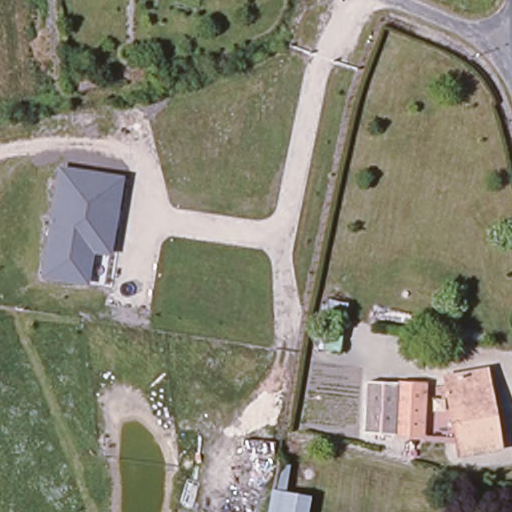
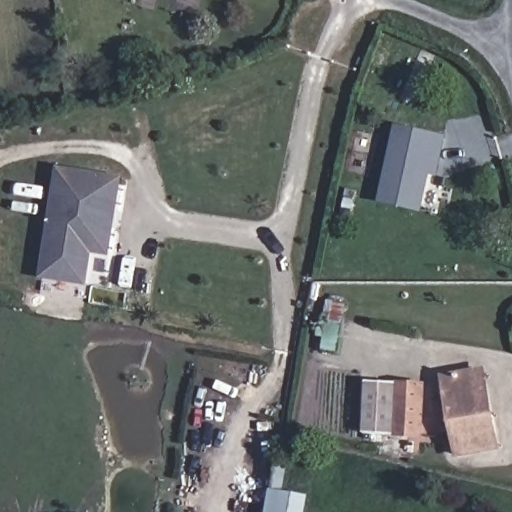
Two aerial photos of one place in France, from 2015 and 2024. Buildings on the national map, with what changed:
new [(439,175),(432,174),(423,212),(379,203),(396,126),(447,137),(439,175)]
unchanged [(113,257),(93,254),(89,288),(38,281),(56,167),(124,176),(113,257)]
unchanged [(321,359),(323,329),(341,332),(337,360),(321,359)]
unchanged [(452,462),(438,384),(467,379),(480,377),(489,423),(494,453),(452,462)]
unchanged [(366,436),(370,385),(429,389),(425,440),(366,436)]
unchanged [(268,512),(278,465),(291,468),(287,493),(310,497),(307,512),(268,512)]

